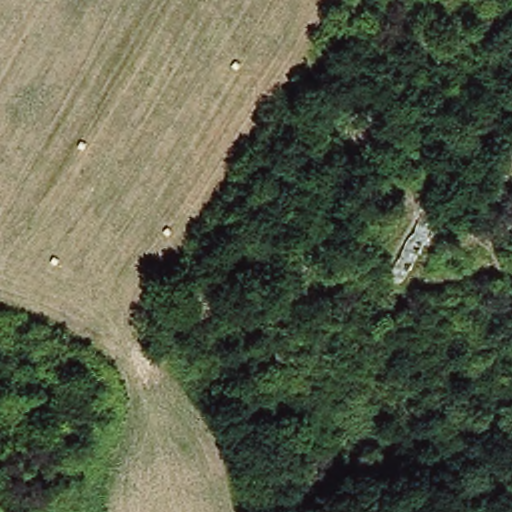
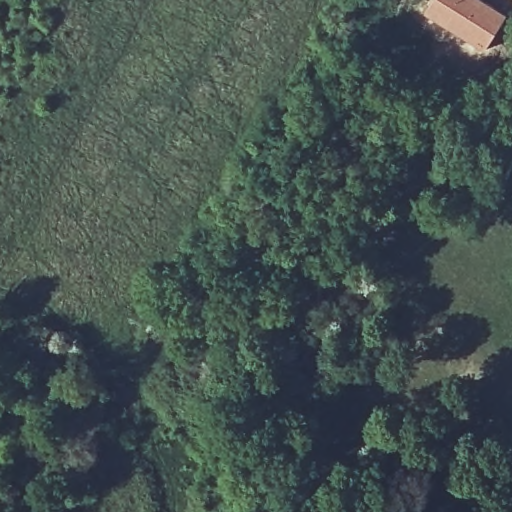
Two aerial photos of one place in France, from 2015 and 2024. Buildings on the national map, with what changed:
new [(483,0),(507,14),(482,52),(422,14),(430,0),(483,0)]
demolished [(498,362),(512,353),(512,393),(498,362)]

